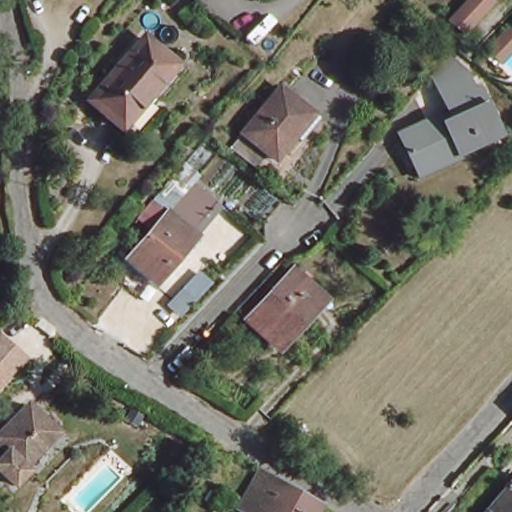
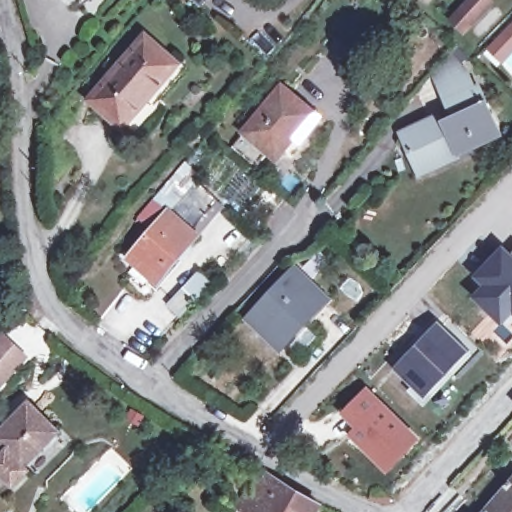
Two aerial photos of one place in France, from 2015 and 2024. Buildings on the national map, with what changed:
unchanged [(201,5),(196,0),(205,0),(201,5)]
unchanged [(493,1),(468,32),(452,21),(469,0),(492,0),(493,1)]
unchanged [(487,47),(512,21),(512,48),(501,60),(487,47)]
unchanged [(176,64),(123,126),(90,98),(143,37),(176,64)]
unchanged [(434,76),(449,59),(464,79),(473,96),(478,94),(492,123),(487,126),(494,142),(459,159),(456,150),(414,170),(402,141),(452,118),(434,76)]
unchanged [(313,117),(283,154),(278,149),(269,159),(263,152),(251,166),(226,146),(275,86),(313,117)]
unchanged [(189,174),(185,180),(158,211),(142,197),(173,161),(189,174)]
unchanged [(185,180),(208,199),(181,231),(158,211),(185,180)]
unchanged [(181,231),(185,234),(144,281),(117,257),(158,211),(181,231)]
new [(499,262),(507,255),(511,260),(512,259),(512,308),(502,319),(478,296),(489,285),(482,277),(499,262)]
unchanged [(324,300),(281,346),(248,316),(291,271),(324,300)]
new [(394,368),(418,343),(413,338),(421,329),(432,340),(444,327),(468,349),(423,397),(394,368)]
new [(29,357),(0,389),(0,332),(29,357)]
new [(356,427),(357,426),(343,412),(365,389),(416,437),(401,454),(397,450),(383,465),(362,446),(350,433),(356,427)]
unchanged [(0,481),(0,434),(4,437),(38,404),(57,423),(66,432),(33,466),(38,471),(24,485),(9,472),(0,481)]
unchanged [(279,487),(316,506),(313,512),(246,512),(238,507),(258,472),(279,487)]
unchanged [(498,486),(501,487),(509,477),(512,480),(512,512),(479,512),(496,492),(494,490),(498,486)]
new [(389,503),(368,498),(370,490),(391,495),(389,503)]

